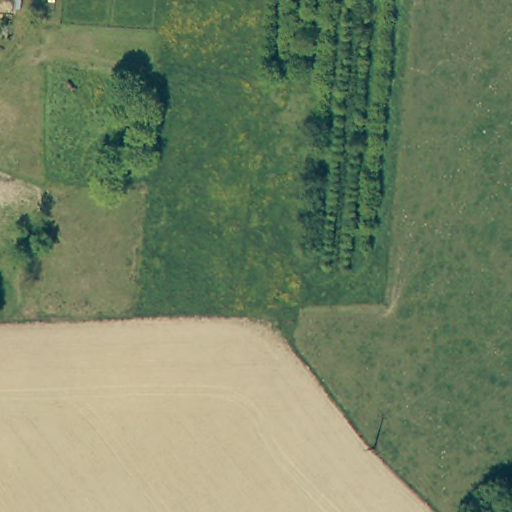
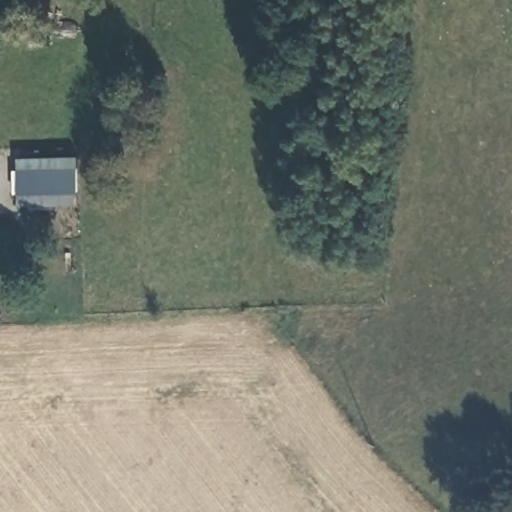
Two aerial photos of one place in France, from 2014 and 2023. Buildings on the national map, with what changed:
new [(18,206),(15,158),(76,158),(77,205),(18,206)]

